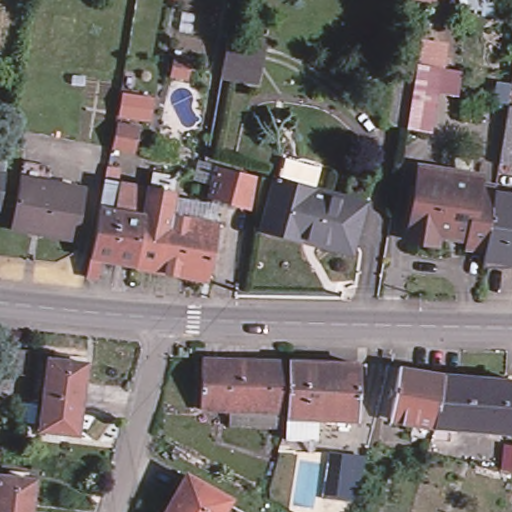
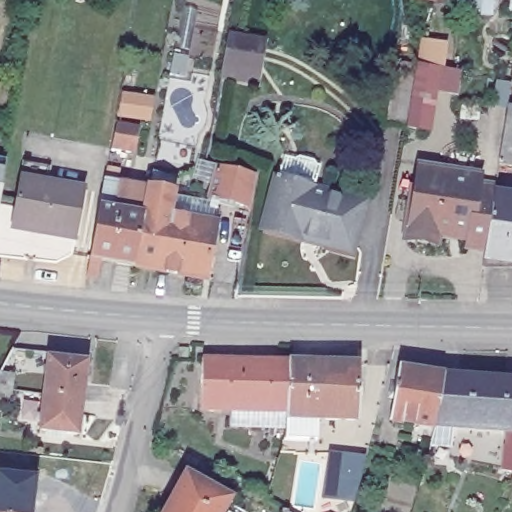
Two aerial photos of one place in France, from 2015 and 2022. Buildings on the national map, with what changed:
unchanged [(220,74),(227,35),(252,39),(260,40),(253,79),(245,77),(220,74)]
unchanged [(440,65),(417,61),(421,37),(448,42),(445,67),(462,70),(458,95),(436,92),(440,65)]
unchanged [(436,92),(432,132),(380,128),(389,65),(390,56),(417,61),(440,65),(436,92)]
unchanged [(509,81),(512,63),(512,82),(509,81)]
unchanged [(151,121),(118,116),(123,90),(155,96),(151,121)]
unchanged [(506,101),(512,103),(512,163),(496,160),(506,101)]
unchanged [(277,171),(280,171),(282,162),(286,163),(293,165),(297,162),(311,165),(314,170),(316,171),(318,171),(314,186),(312,194),(341,202),(362,208),(349,255),(327,249),(328,244),(300,236),(298,241),(261,231),(275,184),(277,171)]
unchanged [(215,163),(229,166),(252,173),(254,174),(251,189),(248,205),(207,195),(215,163)]
unchanged [(2,175),(0,190),(0,164),(5,165),(2,175)]
unchanged [(73,237),(56,235),(10,226),(21,164),(47,169),(45,183),(65,186),(82,189),(73,237)]
unchanged [(445,236),(432,235),(431,246),(425,245),(406,244),(411,184),(411,175),(417,176),(436,177),(450,178),(455,179),(445,236)]
unchanged [(497,268),(498,265),(482,262),(483,251),(468,250),(463,249),(465,238),(445,236),(455,179),(475,180),(473,189),(493,190),(494,185),(499,186),(497,199),(512,201),(512,271),(497,268)]
unchanged [(202,276),(155,267),(133,263),(88,255),(97,206),(100,186),(119,190),(120,185),(147,190),(194,198),(190,220),(211,224),(202,276)]
unchanged [(29,349),(26,375),(12,373),(10,389),(8,405),(0,403),(0,368),(10,347),(29,349)]
unchanged [(205,369),(205,355),(225,356),(246,356),(245,408),(223,407),(203,407),(205,369)]
unchanged [(350,360),(360,360),(360,414),(335,414),(319,414),(319,435),(306,435),(286,435),(286,428),(287,408),(245,408),(246,356),(290,358),(306,358),(307,358),(350,360)]
unchanged [(46,357),(84,361),(80,397),(42,392),(46,357)]
unchanged [(388,417),(395,366),(439,371),(431,421),(388,417)]
unchanged [(510,430),(490,428),(431,421),(439,371),(512,378),(512,411),(510,430)]
unchanged [(42,392),(80,397),(76,432),(37,429),(42,392)]
unchanged [(500,443),(508,444),(510,441),(512,442),(512,470),(505,470),(496,468),(500,443)]
unchanged [(331,453),(370,457),(359,500),(326,496),(331,453)]
unchanged [(217,493),(215,497),(231,507),(229,512),(149,512),(174,468),(217,493)]
unchanged [(33,512),(0,512),(0,475),(37,479),(33,512)]

